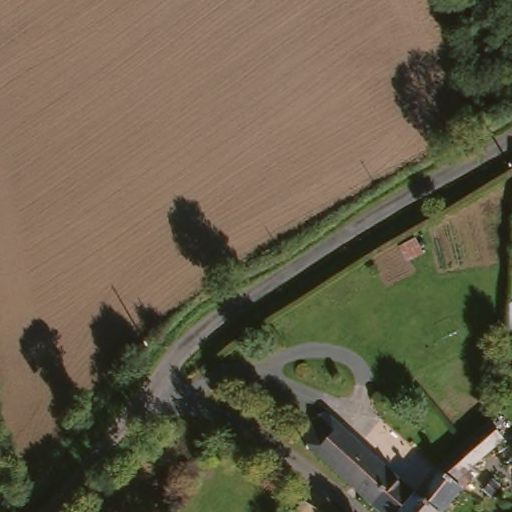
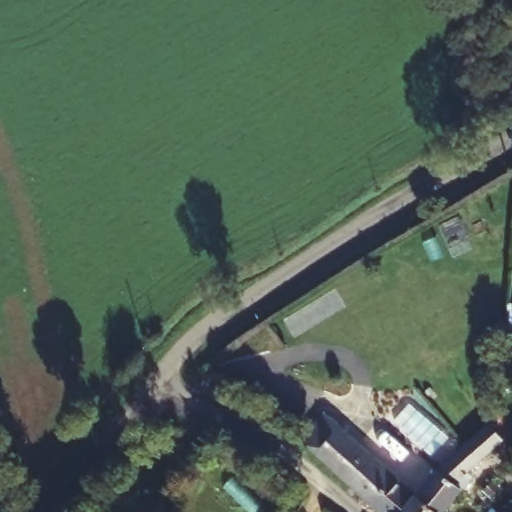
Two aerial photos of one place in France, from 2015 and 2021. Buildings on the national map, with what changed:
unchanged [(301,438),(326,406),(372,446),(363,457),(334,431),(316,451),(301,438)]
unchanged [(469,441),(493,420),(495,422),(502,431),(486,451),(478,460),(485,469),(481,471),(447,512),(446,512),(421,490),(445,462),(469,441)]
unchanged [(334,431),(363,457),(372,446),(421,490),(446,512),(388,512),(316,451),(334,431)]
unchanged [(156,438),(161,447),(144,461),(136,450),(134,449),(154,436),(156,438)]
unchanged [(497,475),(504,468),(512,475),(512,484),(504,490),(493,480),(497,475)]

